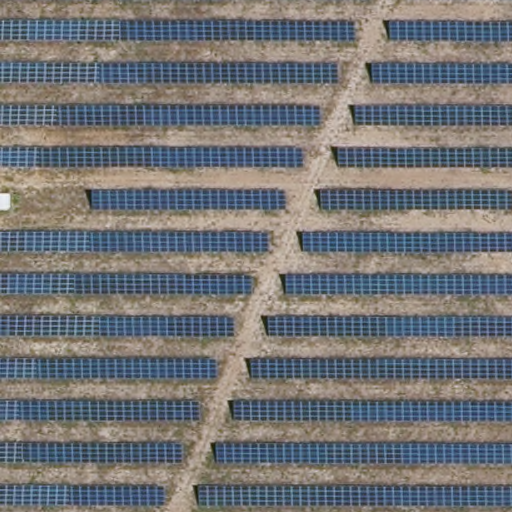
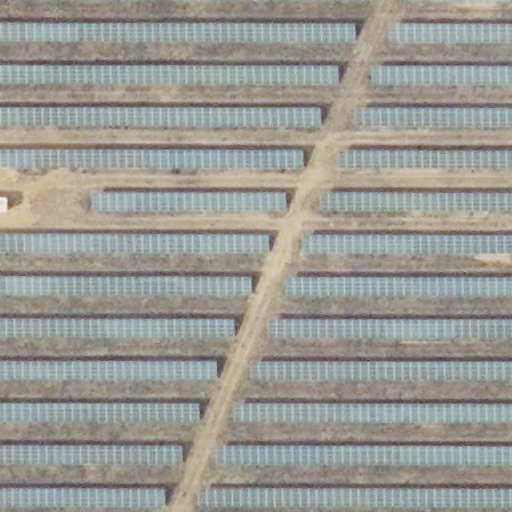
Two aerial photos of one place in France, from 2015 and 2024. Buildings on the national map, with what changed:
unchanged [(10,194),(10,212),(0,213),(0,194),(10,194)]

